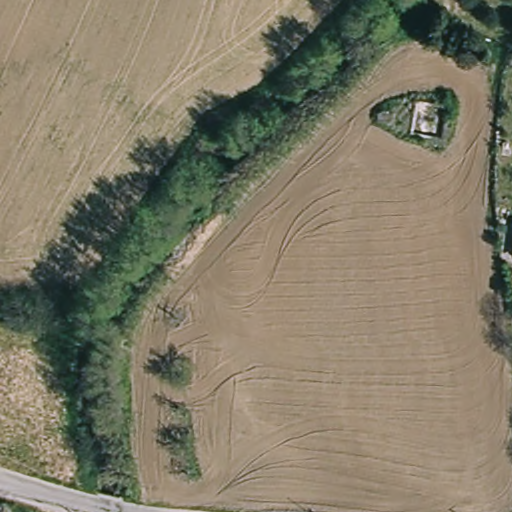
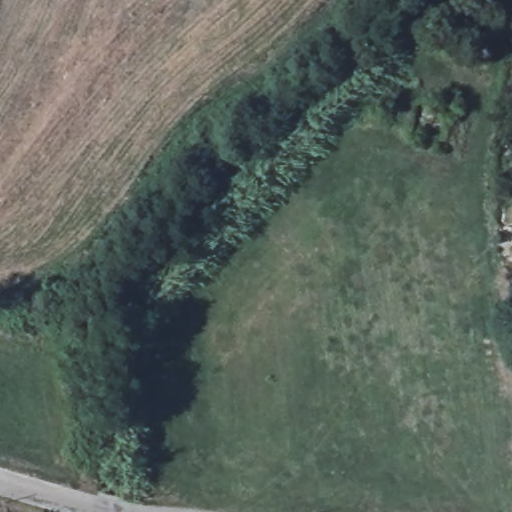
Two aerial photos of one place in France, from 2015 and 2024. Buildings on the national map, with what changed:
unchanged [(38,468),(42,457),(59,462),(54,474),(38,468)]

